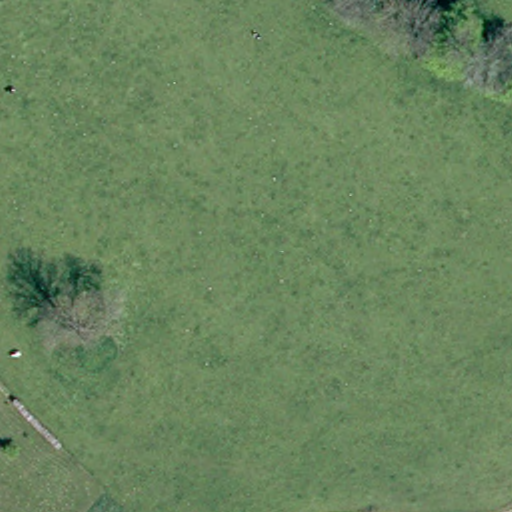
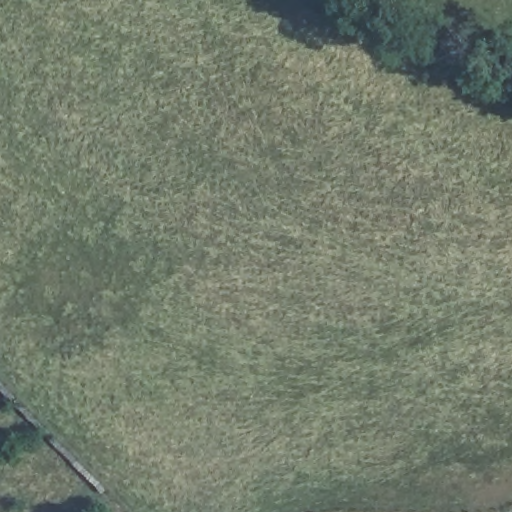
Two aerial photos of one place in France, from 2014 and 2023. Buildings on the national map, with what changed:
[]

